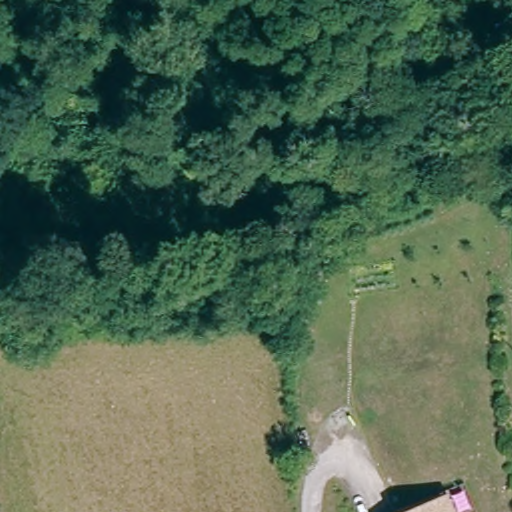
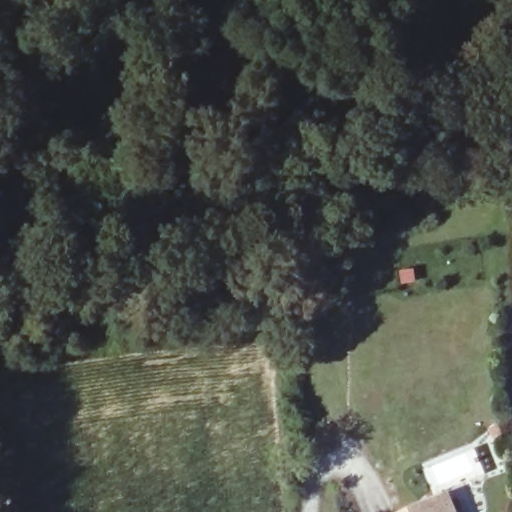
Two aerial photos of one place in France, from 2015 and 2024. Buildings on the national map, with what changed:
unchanged [(462,512),(416,512),(455,496),(462,512)]

